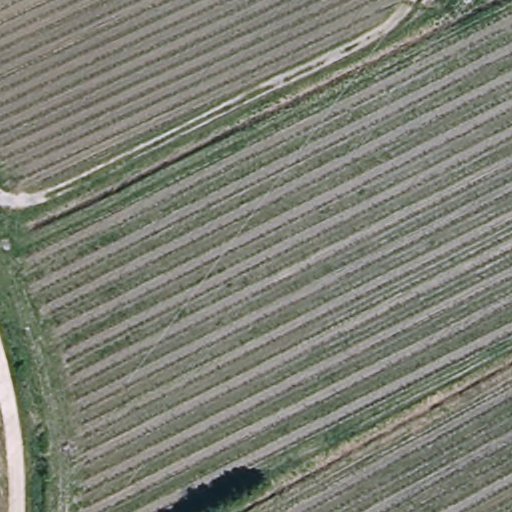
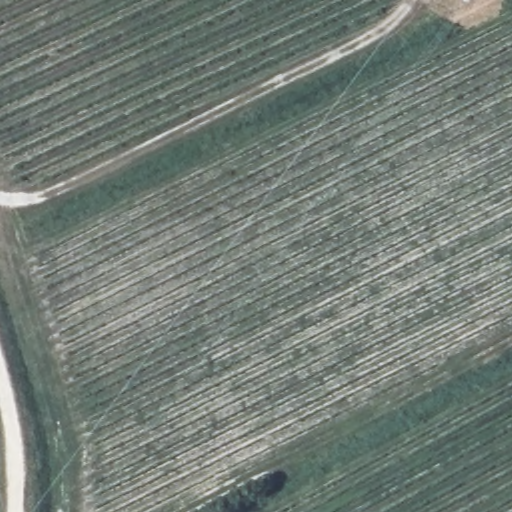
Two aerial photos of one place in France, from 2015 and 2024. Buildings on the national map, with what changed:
[]

